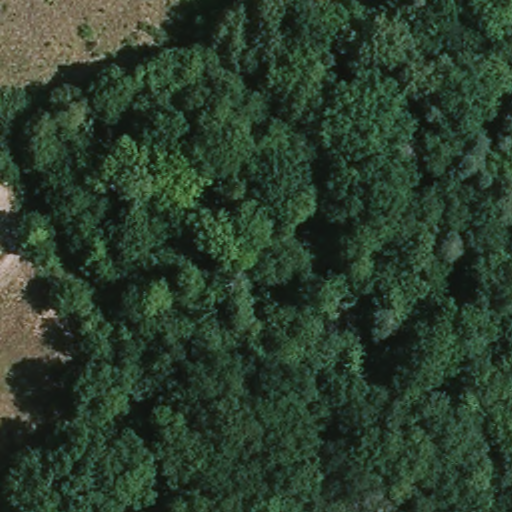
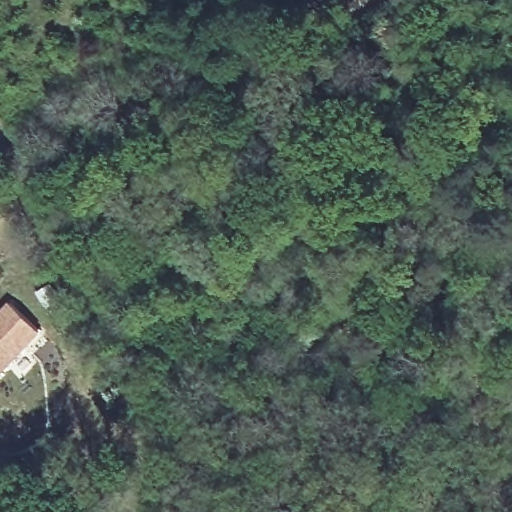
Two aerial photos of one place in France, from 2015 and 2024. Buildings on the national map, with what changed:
new [(40,330),(0,373),(0,313),(10,302),(40,330)]

